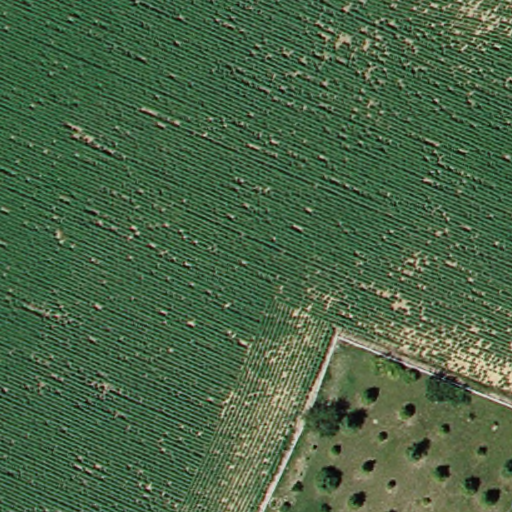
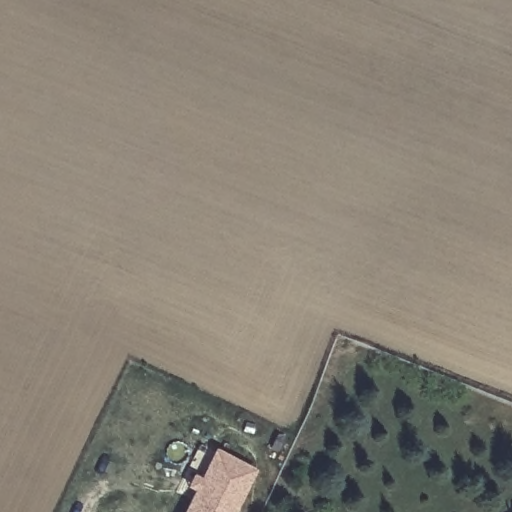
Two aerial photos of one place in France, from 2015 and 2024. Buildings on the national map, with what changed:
new [(230,512),(185,512),(212,455),(249,473),(230,512)]

